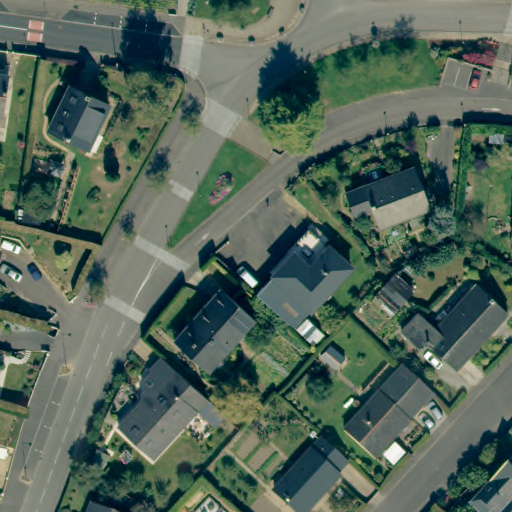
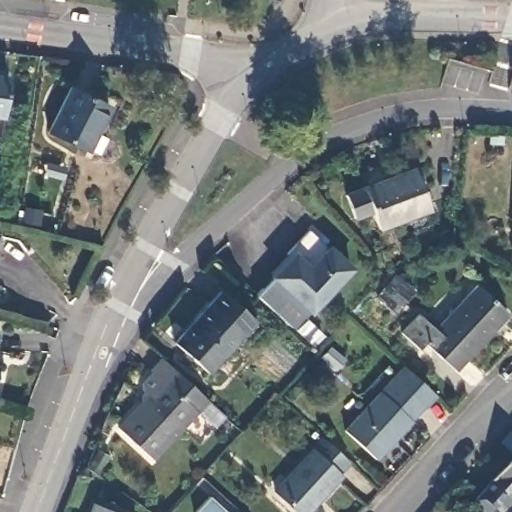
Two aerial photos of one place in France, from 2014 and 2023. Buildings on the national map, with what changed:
unchanged [(0,100),(0,72),(4,72),(0,100)]
unchanged [(82,150),(44,132),(65,88),(104,107),(82,150)]
unchanged [(429,209),(378,229),(362,188),(413,168),(429,209)]
unchanged [(256,290),(291,253),(287,249),(309,225),(351,264),(293,325),(256,290)]
unchanged [(414,349),(397,333),(413,314),(430,330),(471,285),(502,314),(450,370),(420,342),(414,349)]
unchanged [(250,320),(202,373),(169,343),(216,290),(250,320)]
unchanged [(216,422),(197,405),(152,454),(117,423),(142,396),(141,394),(146,388),(142,385),(142,379),(152,368),(150,366),(161,354),(225,412),(216,422)]
unchanged [(340,431),(398,366),(429,394),(405,420),(406,421),(371,459),(340,431)]
unchanged [(496,443),(508,429),(512,434),(512,459),(496,443)]
unchanged [(269,497),(317,443),(342,466),(332,478),(335,481),(307,512),(285,512),(269,497)]
unchanged [(486,511),(485,512),(472,512),(464,504),(502,463),(509,469),(512,466),(512,512),(487,512),(486,511)]
unchanged [(88,503),(110,512),(85,512),(88,503)]

